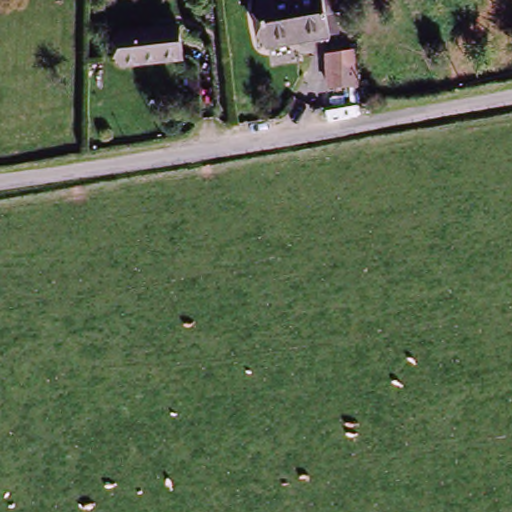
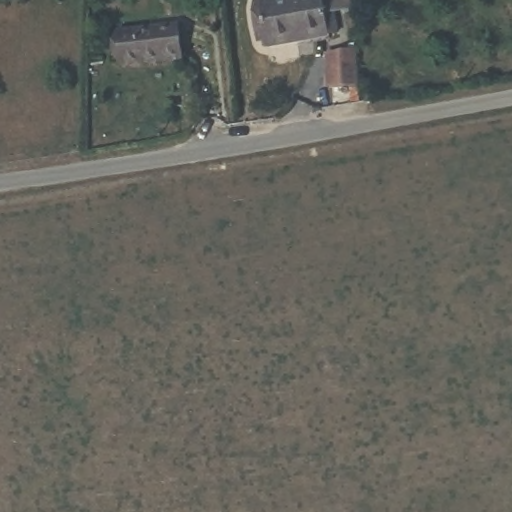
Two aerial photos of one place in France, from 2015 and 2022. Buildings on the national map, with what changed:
unchanged [(328,14),(332,38),(258,51),(249,3),(264,0),(355,0),(355,10),(328,14)]
unchanged [(172,20),(177,54),(120,61),(115,28),(172,20)]
unchanged [(333,55),(365,53),(364,73),(369,84),(338,88),(333,55)]

